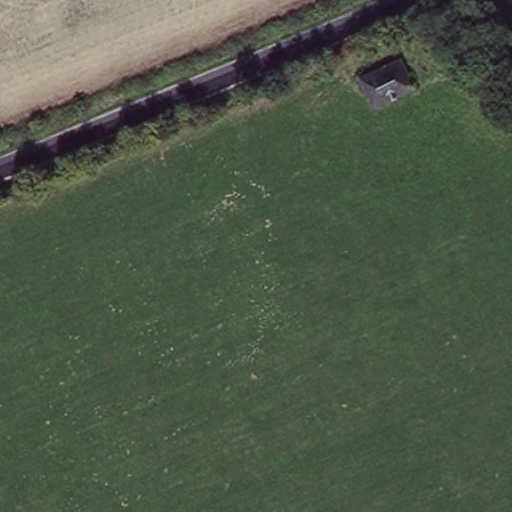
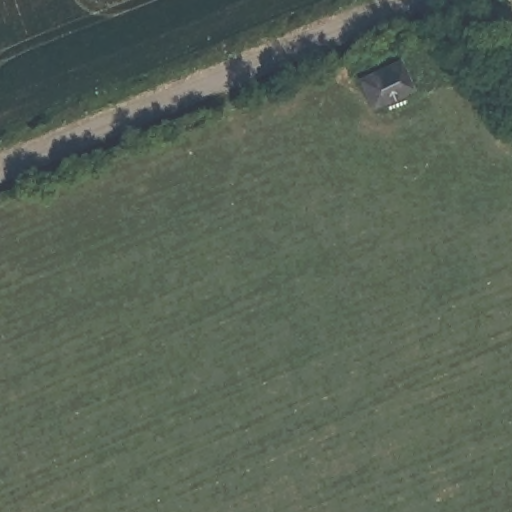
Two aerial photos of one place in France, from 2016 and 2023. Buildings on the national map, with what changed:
unchanged [(366,77),(407,61),(420,91),(378,107),(366,77)]

